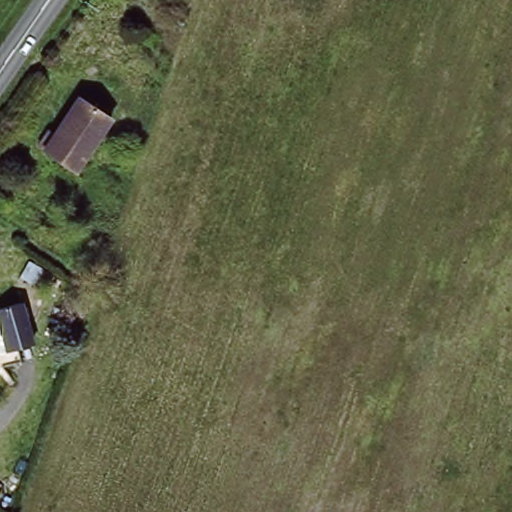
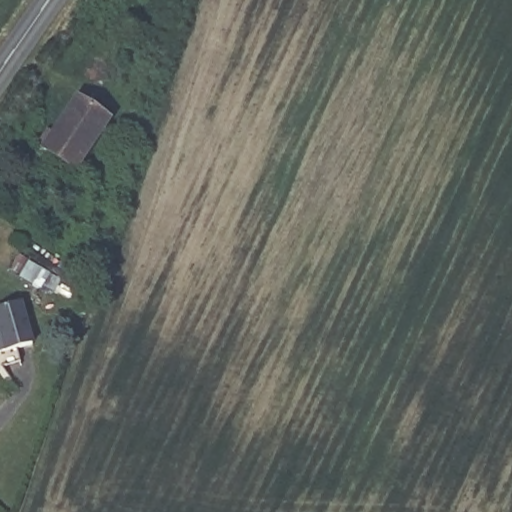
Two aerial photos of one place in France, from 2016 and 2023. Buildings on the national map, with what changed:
unchanged [(80,96),(114,118),(79,171),(39,146),(51,126),(57,130),(80,96)]
unchanged [(22,299),(36,343),(0,354),(0,307),(22,299)]

